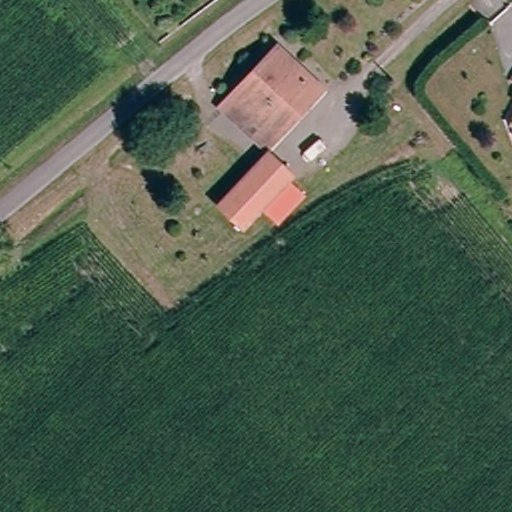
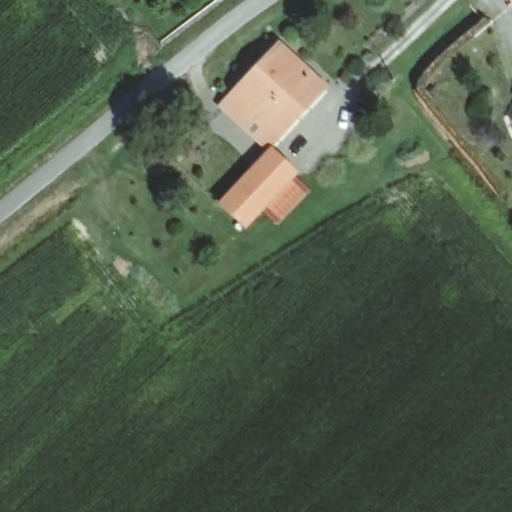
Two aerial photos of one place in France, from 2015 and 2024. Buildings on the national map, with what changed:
unchanged [(250,128),(226,106),(279,45),(325,89),(279,137),(268,148),(250,128)]
unchanged [(220,204),(273,152),(296,175),(278,193),(245,227),(225,209),(220,204)]

